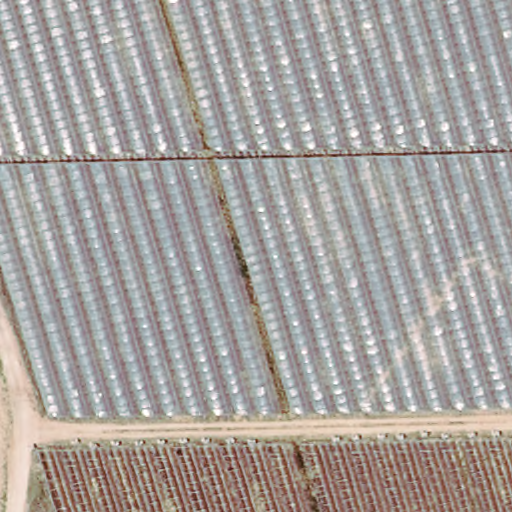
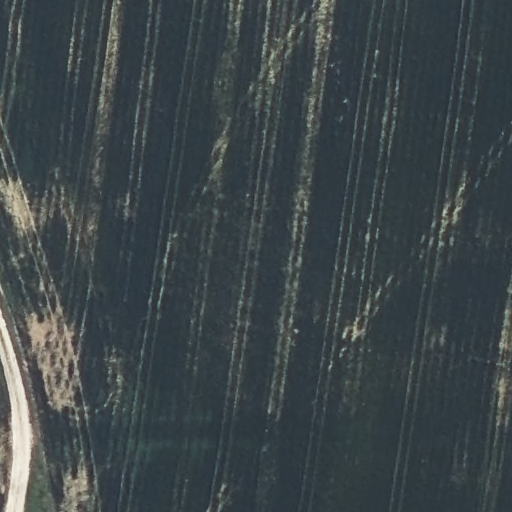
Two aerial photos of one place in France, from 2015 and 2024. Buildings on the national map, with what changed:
demolished [(0,168),(0,0),(155,0),(200,153),(0,168)]
demolished [(217,149),(171,0),(512,0),(512,137),(217,149)]
demolished [(512,152),(512,410),(297,415),(222,166),(512,152)]
demolished [(278,410),(55,419),(0,234),(0,183),(207,168),(278,410)]
demolished [(0,446),(0,378),(6,395),(0,446)]
demolished [(325,512),(305,446),(512,438),(512,512),(325,512)]
demolished [(290,445),(310,512),(59,512),(40,451),(290,445)]

